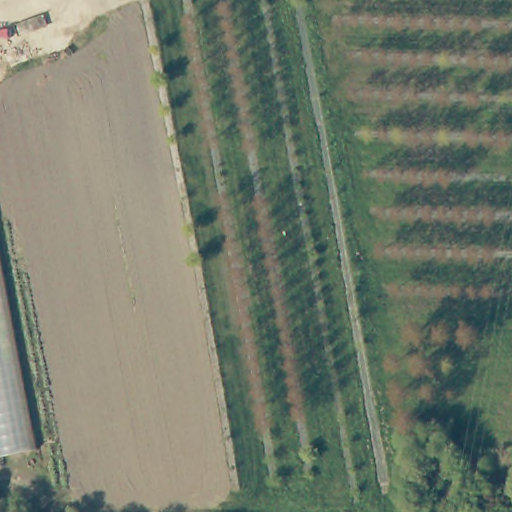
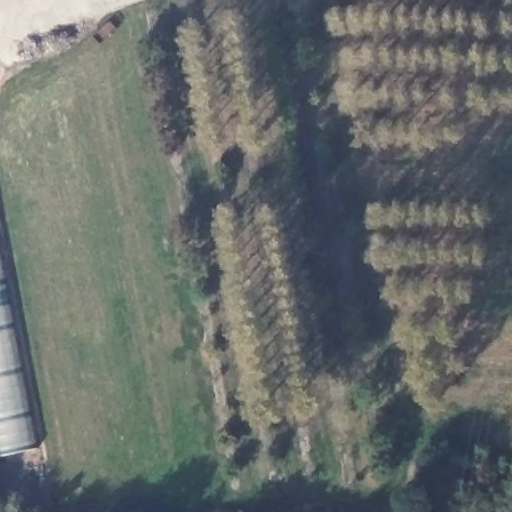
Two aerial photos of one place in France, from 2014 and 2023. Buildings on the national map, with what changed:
unchanged [(37,452),(0,461),(0,267),(37,452)]

